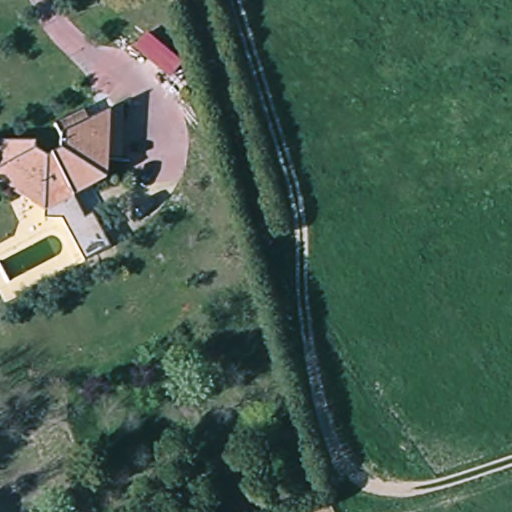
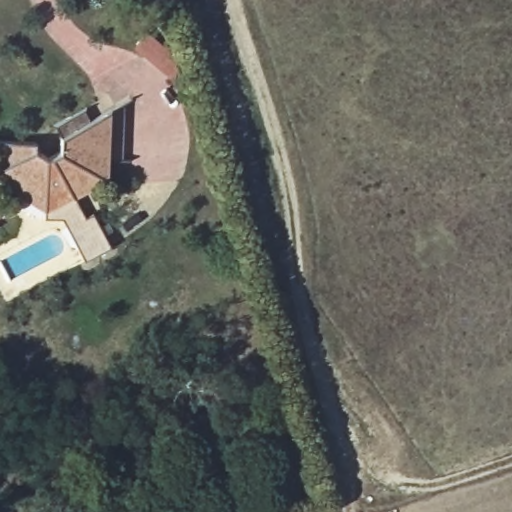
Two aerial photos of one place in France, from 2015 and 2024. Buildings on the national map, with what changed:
unchanged [(129,162),(114,162),(114,179),(80,197),(91,217),(98,214),(116,247),(90,262),(67,220),(49,220),(50,213),(0,181),(0,141),(41,142),(41,150),(53,157),(65,151),(66,136),(116,110),(130,102),(129,162)]

